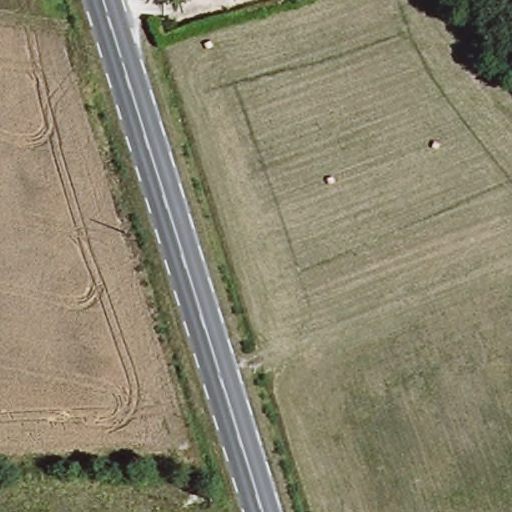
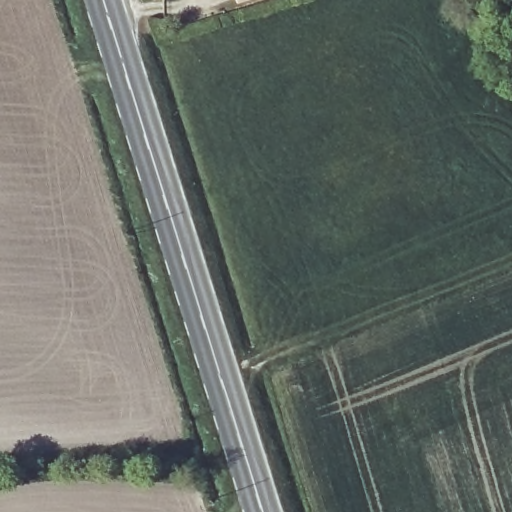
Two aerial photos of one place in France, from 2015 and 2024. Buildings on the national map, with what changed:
unchanged [(231,1),(231,0),(236,0),(231,1)]

